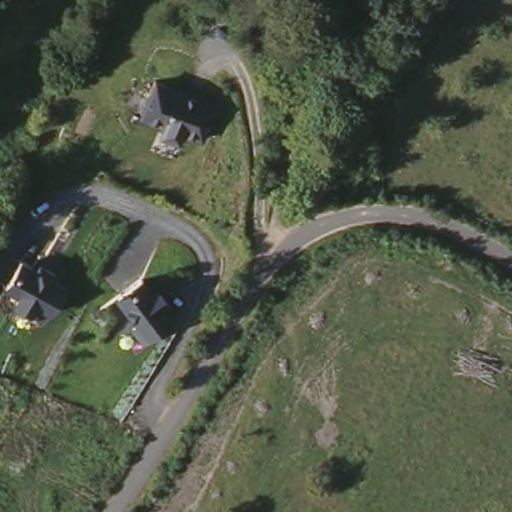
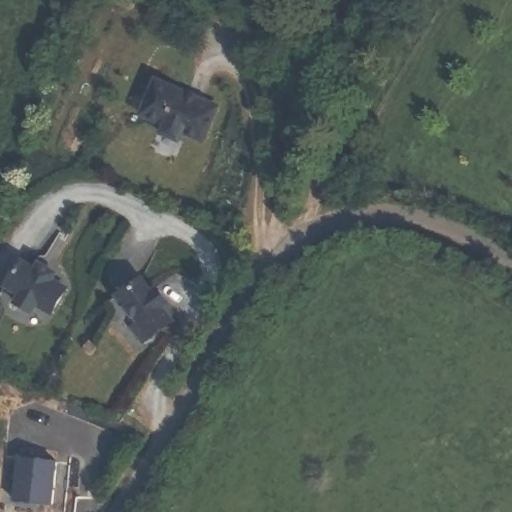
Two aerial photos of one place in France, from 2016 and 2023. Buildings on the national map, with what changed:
unchanged [(186,133),(179,144),(160,134),(164,125),(141,115),(158,77),(220,104),(205,142),(186,133)]
unchanged [(38,270),(41,265),(56,274),(53,280),(66,289),(53,312),(38,303),(34,309),(20,301),(24,294),(9,286),(23,260),(38,270)]
unchanged [(116,296),(146,275),(156,289),(160,286),(172,304),(169,306),(180,322),(150,339),(116,296)]
new [(56,462),(53,504),(15,500),(18,458),(56,462)]

